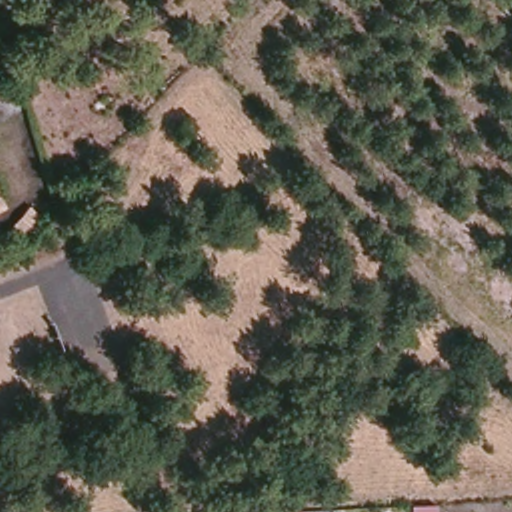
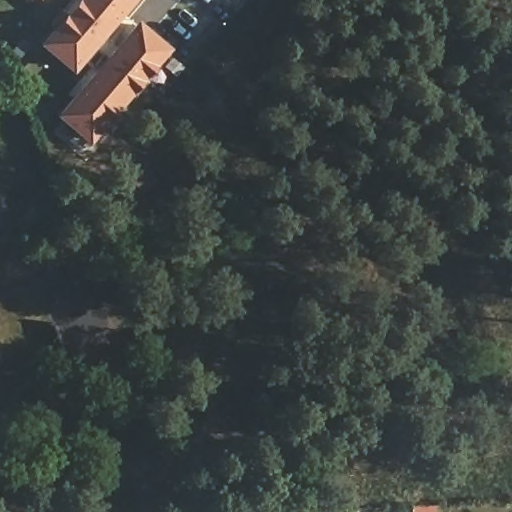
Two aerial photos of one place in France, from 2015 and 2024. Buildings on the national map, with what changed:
new [(133,0),(71,73),(37,45),(76,0),(133,0)]
new [(134,21),(169,50),(87,145),(52,116),(134,21)]
new [(434,506),(434,512),(409,512),(409,507),(434,506)]
unchanged [(304,510),(305,512),(281,512),(304,510)]

